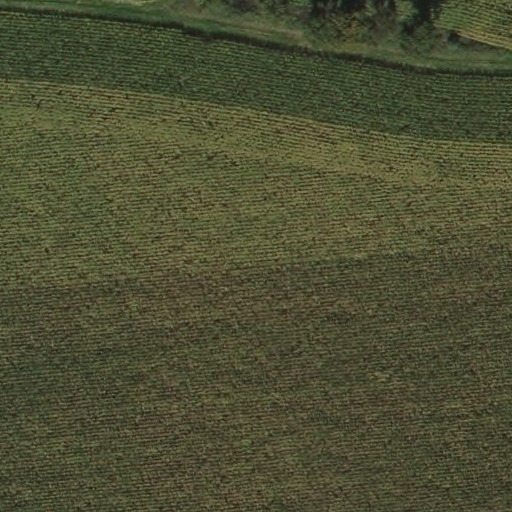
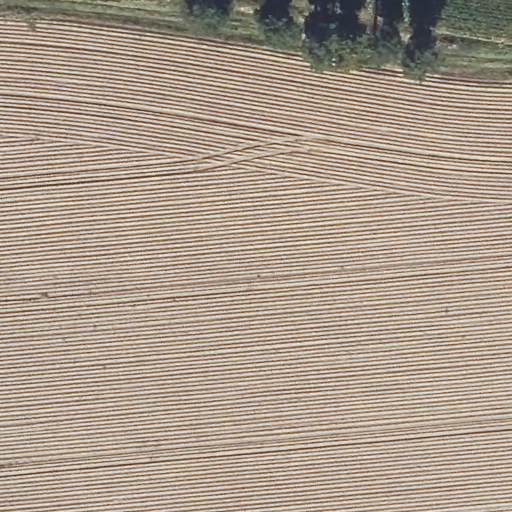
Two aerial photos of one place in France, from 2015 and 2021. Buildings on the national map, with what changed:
[]

